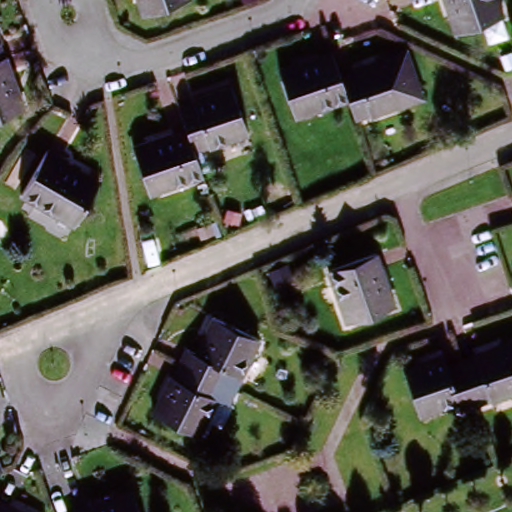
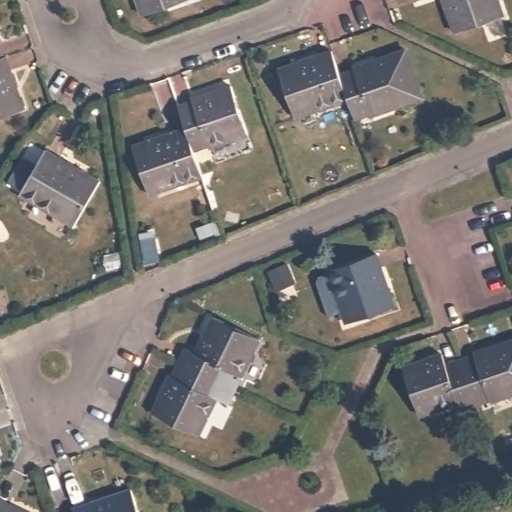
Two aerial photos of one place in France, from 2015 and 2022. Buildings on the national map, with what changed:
unchanged [(178,0),(139,13),(134,0),(178,0)]
unchanged [(456,38),(442,0),(498,0),(505,19),(456,38)]
unchanged [(5,41),(0,43),(0,28),(5,41)]
unchanged [(5,57),(0,59),(0,43),(5,57)]
unchanged [(350,70),(349,66),(401,50),(418,96),(367,115),(365,112),(352,117),(346,100),(338,74),(350,70)]
unchanged [(338,74),(346,100),(292,117),(276,71),(330,51),(338,74)]
unchanged [(0,118),(0,59),(5,57),(9,56),(27,107),(0,118)]
unchanged [(182,129),(175,107),(189,103),(189,98),(228,85),(245,133),(206,147),(205,144),(189,149),(182,129)]
unchanged [(130,147),(182,129),(189,149),(197,173),(145,191),(130,147)]
unchanged [(97,180),(72,226),(20,196),(45,151),(97,180)]
unchanged [(377,254),(395,305),(349,322),(330,271),(377,254)]
unchanged [(220,384),(178,364),(185,348),(194,352),(210,316),(256,337),(237,377),(225,372),(220,384)]
unchanged [(456,360),(512,341),(512,391),(471,405),(456,360)]
unchanged [(439,355),(442,365),(456,360),(471,405),(457,409),(454,401),(416,414),(400,368),(439,355)]
unchanged [(197,434),(151,412),(166,377),(172,376),(178,364),(220,384),(197,434)]
unchanged [(2,468),(0,469),(0,463),(2,468)]
unchanged [(80,505),(137,484),(147,512),(75,512),(82,509),(80,505)]
unchanged [(27,512),(0,512),(0,499),(27,512)]

